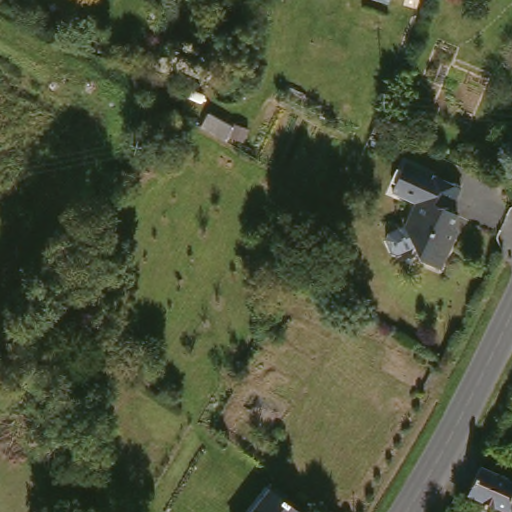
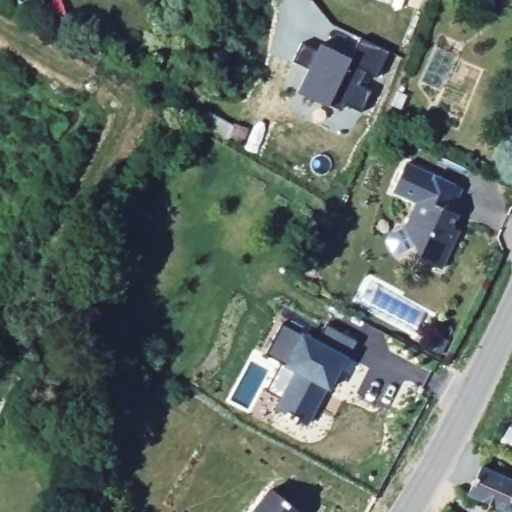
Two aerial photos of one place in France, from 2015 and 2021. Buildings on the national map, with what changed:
new [(301,40),(317,48),(321,41),(351,56),(361,36),(391,51),(377,77),(367,71),(360,85),(372,91),(362,112),(344,103),(341,109),(297,88),(308,66),(292,58),(301,40)]
unchanged [(458,205),(465,208),(459,222),(466,225),(463,231),(450,263),(429,254),(419,233),(417,232),(413,226),(415,224),(413,221),(426,191),(431,193),(441,170),(468,182),(458,205)]
new [(318,345),(327,328),(360,345),(350,364),(344,375),(342,373),(331,392),(328,391),(308,428),(297,422),(296,424),(287,420),(287,417),(278,411),(297,375),(266,358),(283,326),(318,345)]
unchanged [(512,468),(512,512),(508,512),(478,498),(495,460),(512,468)]
unchanged [(282,488),(308,512),(261,512),(282,488)]

